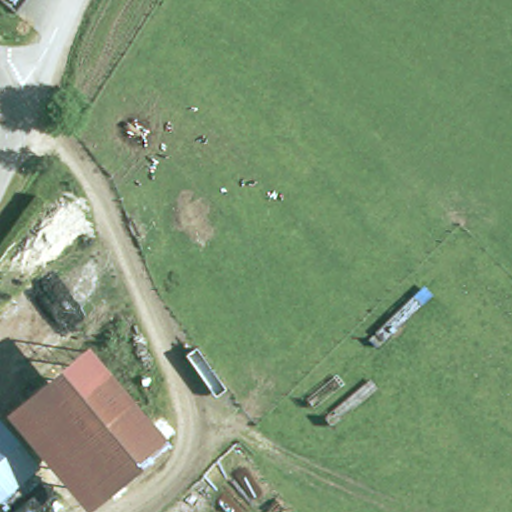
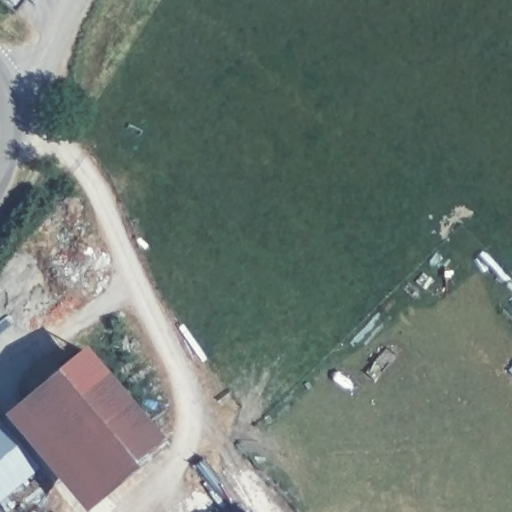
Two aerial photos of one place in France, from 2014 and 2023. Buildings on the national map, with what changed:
unchanged [(85,512),(84,512),(5,416),(84,351),(166,447),(85,512)]
unchanged [(35,469),(0,499),(0,428),(35,469)]

